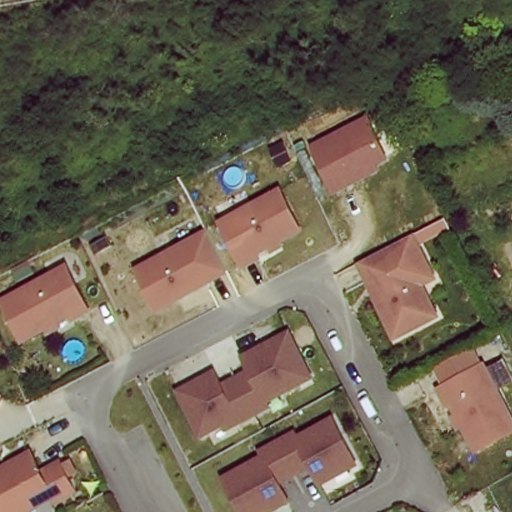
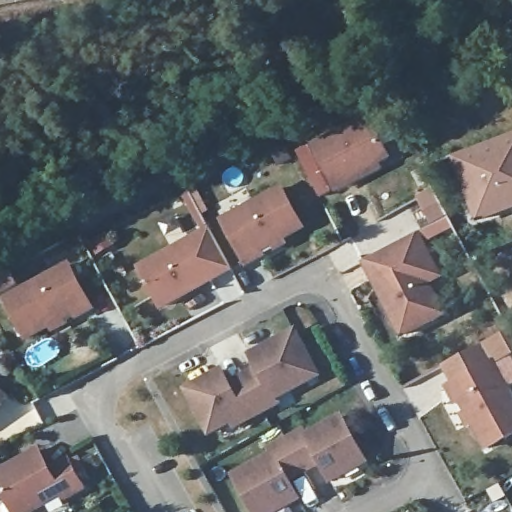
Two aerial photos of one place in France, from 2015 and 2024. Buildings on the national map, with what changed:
unchanged [(328,196),(298,152),(358,117),(385,161),(328,196)]
new [(453,158),(512,134),(512,211),(474,224),(453,158)]
unchanged [(274,189),(296,228),(254,252),(256,257),(241,266),(216,222),(274,189)]
new [(432,194),(444,219),(429,227),(416,202),(432,194)]
unchanged [(156,309),(133,270),(203,231),(225,270),(203,283),(175,299),(156,309)]
unchanged [(412,238),(436,283),(424,290),(439,319),(399,341),(359,267),(412,238)]
unchanged [(0,311),(0,303),(60,269),(85,312),(69,321),(67,317),(20,344),(0,311)]
unchanged [(230,435),(222,426),(205,434),(177,390),(219,366),(227,378),(252,365),(247,351),(286,329),(314,379),(230,435)]
unchanged [(512,402),(512,432),(483,448),(457,398),(453,400),(444,384),(490,360),(512,402)]
unchanged [(263,451),(296,433),(299,438),(334,419),(359,464),(322,484),(312,465),(281,483),(291,501),(270,512),(245,512),(226,478),(266,456),(263,451)]
unchanged [(48,475),(67,465),(82,493),(63,504),(60,499),(38,512),(11,512),(0,494),(0,477),(37,456),(48,475)]

